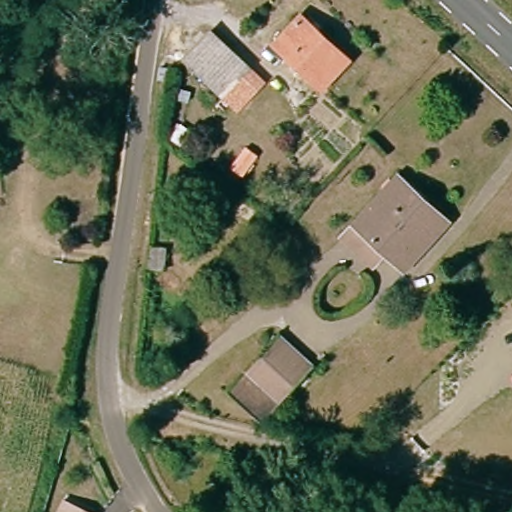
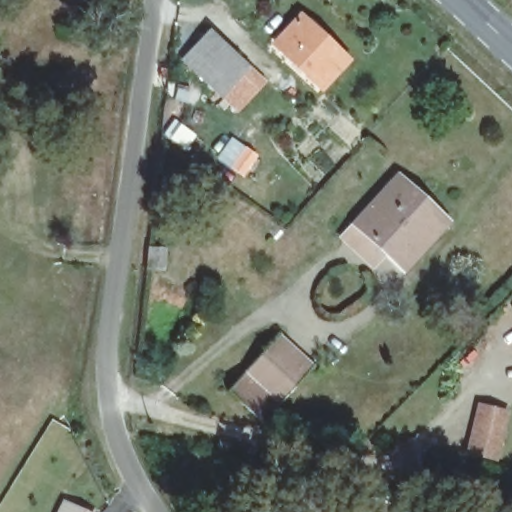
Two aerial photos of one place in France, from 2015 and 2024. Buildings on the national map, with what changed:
unchanged [(342,57),(314,87),(267,45),(295,14),(342,57)]
unchanged [(239,72),(223,90),(186,56),(202,38),(239,72)]
unchanged [(437,214),(396,259),(347,217),(389,170),(437,214)]
unchanged [(243,363),(279,324),(308,351),(273,389),(243,363)]
unchanged [(264,399),(255,409),(225,382),(243,363),(273,389),(264,399)]
new [(464,453),(477,403),(509,411),(496,459),(464,453)]
unchanged [(81,512),(69,512),(72,507),(81,512)]

